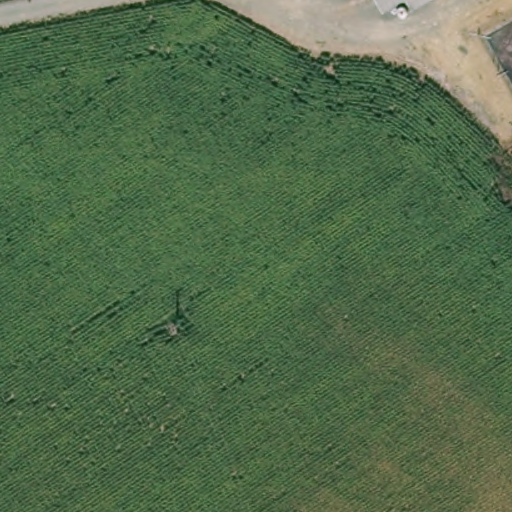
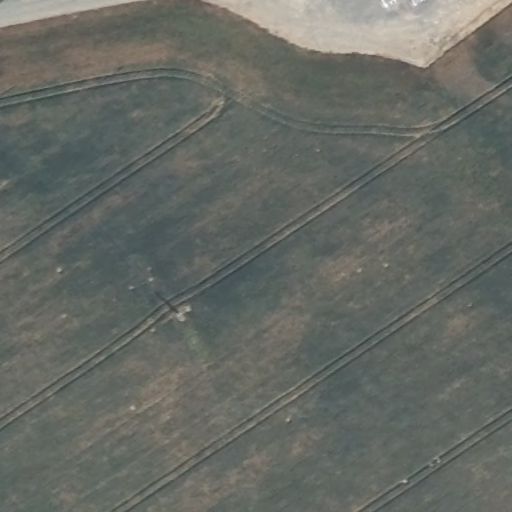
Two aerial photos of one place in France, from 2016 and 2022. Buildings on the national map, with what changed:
unchanged [(389,0),(407,0),(395,9),(389,0)]

